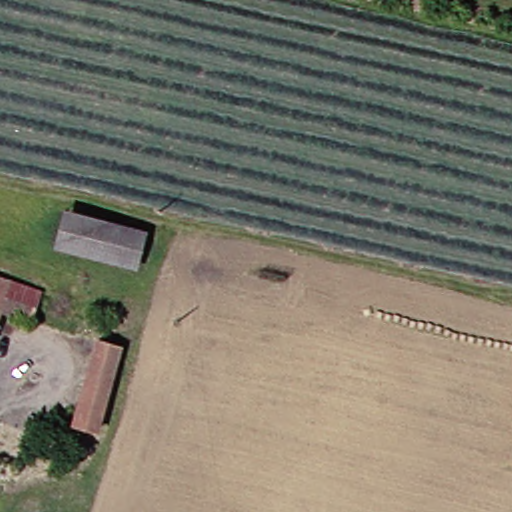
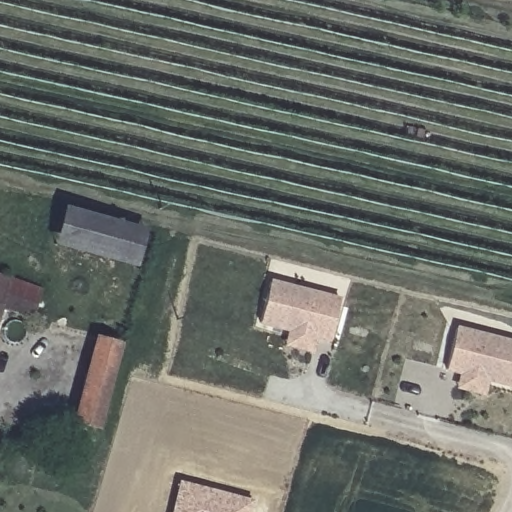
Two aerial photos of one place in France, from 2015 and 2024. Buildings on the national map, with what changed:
unchanged [(149,230),(139,267),(55,242),(64,206),(149,230)]
unchanged [(0,320),(0,270),(44,286),(39,302),(35,320),(5,309),(0,320)]
demolished [(179,280),(190,299),(154,318),(142,295),(179,280)]
new [(274,280),(343,298),(333,339),(264,321),(274,280)]
new [(460,327),(512,340),(512,382),(449,367),(460,327)]
new [(319,334),(315,349),(289,343),(293,328),(319,334)]
unchanged [(99,431),(78,423),(102,340),(124,346),(99,431)]
new [(504,380),(500,395),(474,389),(478,374),(504,380)]
new [(180,481),(253,501),(250,512),(172,512),(180,481)]

